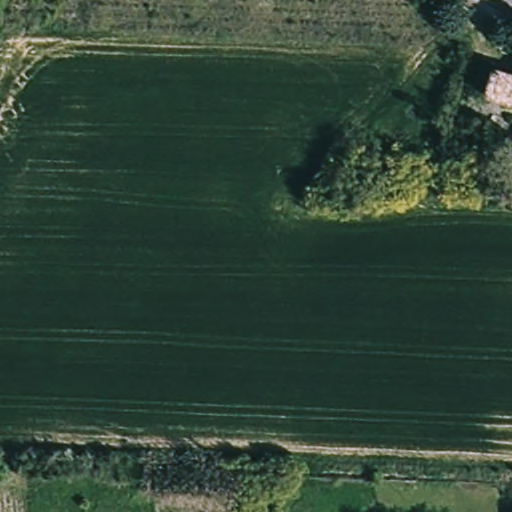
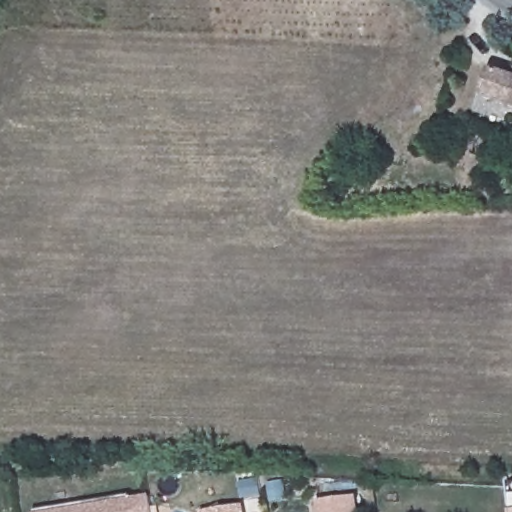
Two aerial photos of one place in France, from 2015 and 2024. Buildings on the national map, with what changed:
unchanged [(508,80),(512,68),(512,111),(481,100),(490,74),(508,80)]
new [(130,494),(132,498),(150,495),(153,512),(35,512),(35,511),(130,494)]
new [(355,512),(317,512),(315,503),(352,497),(355,512)]
new [(240,512),(200,512),(199,511),(238,503),(240,512)]
new [(512,509),(512,512),(510,512),(510,509),(512,509)]

